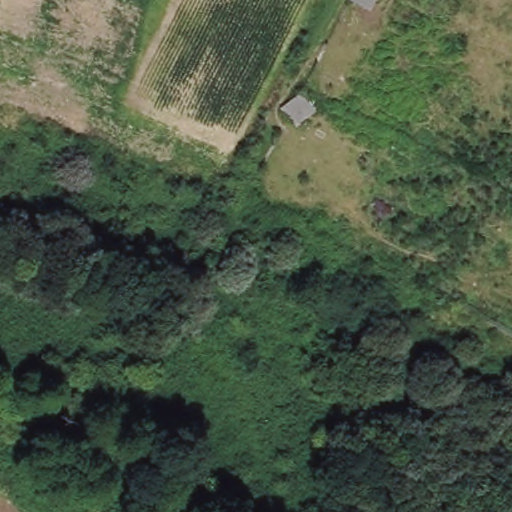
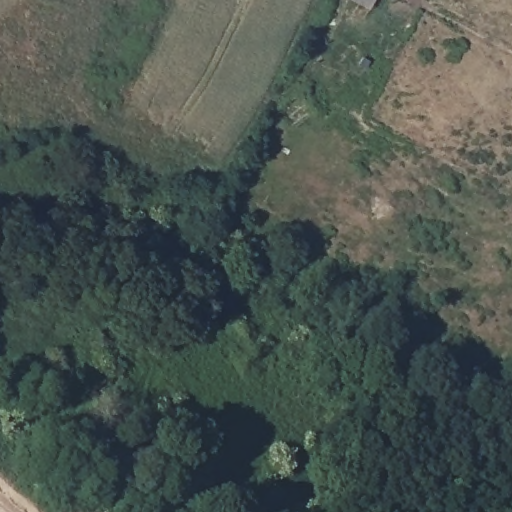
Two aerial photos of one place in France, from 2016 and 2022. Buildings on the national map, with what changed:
unchanged [(349,0),(376,0),(370,10),(349,0)]

